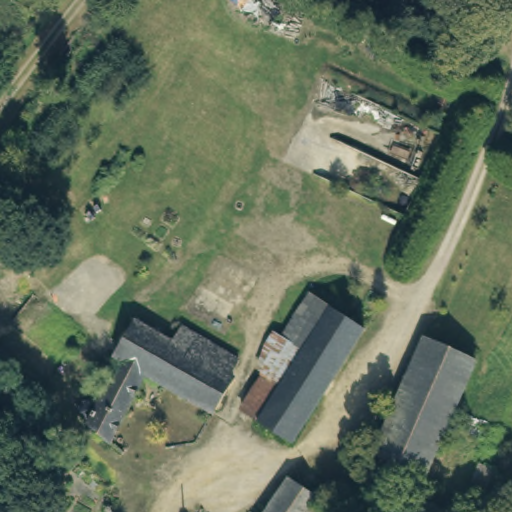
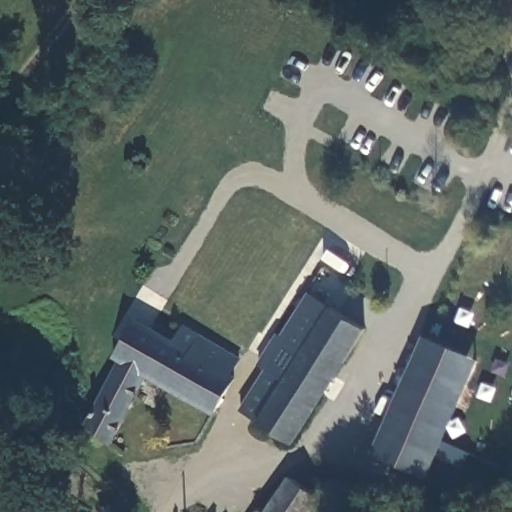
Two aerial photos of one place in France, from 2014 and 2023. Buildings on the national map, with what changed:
unchanged [(264,376),(259,366),(261,356),(275,329),(282,333),(309,291),(331,305),(330,307),(363,327),(291,443),(274,432),(242,411),(264,376)]
unchanged [(113,356),(134,317),(174,339),(183,324),(238,358),(230,373),(234,375),(214,411),(146,373),(120,360),(113,356)]
unchanged [(420,481),(368,456),(420,336),(472,356),(420,481)]
unchanged [(111,441),(87,422),(89,418),(80,413),(78,406),(80,401),(89,397),(98,402),(120,360),(146,373),(144,377),(111,441)]
unchanged [(289,476),(322,498),(312,512),(265,512),(289,476)]

